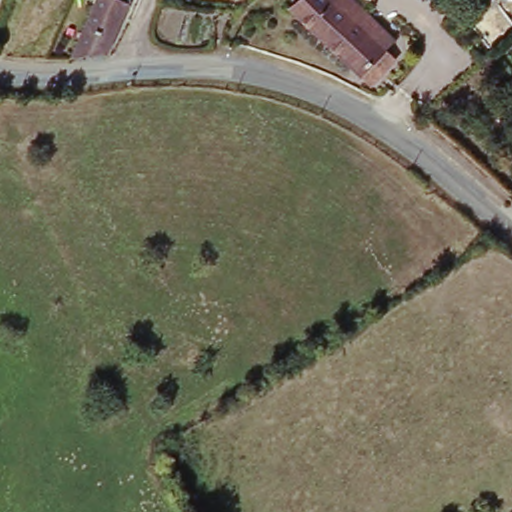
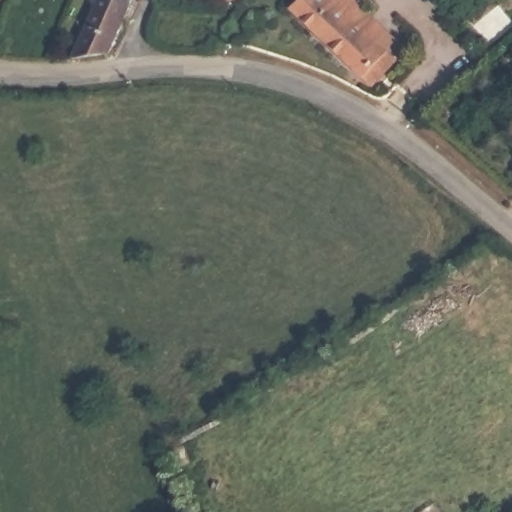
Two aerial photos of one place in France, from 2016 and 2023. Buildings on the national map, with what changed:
unchanged [(74,65),(101,0),(137,0),(110,63),(74,65)]
unchanged [(399,68),(375,91),(357,73),(282,0),(330,0),(381,50),(399,68)]
unchanged [(381,50),(330,0),(359,0),(397,35),(381,50)]

